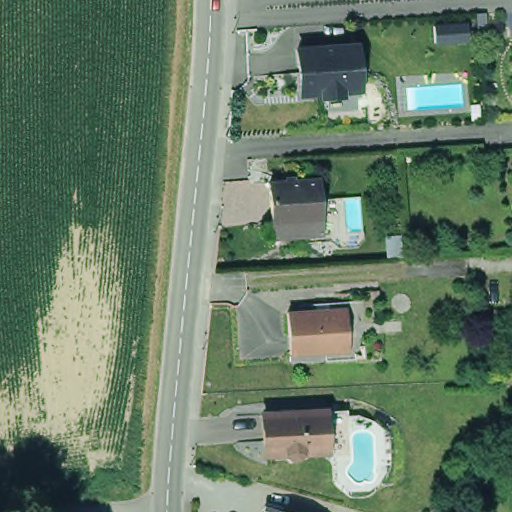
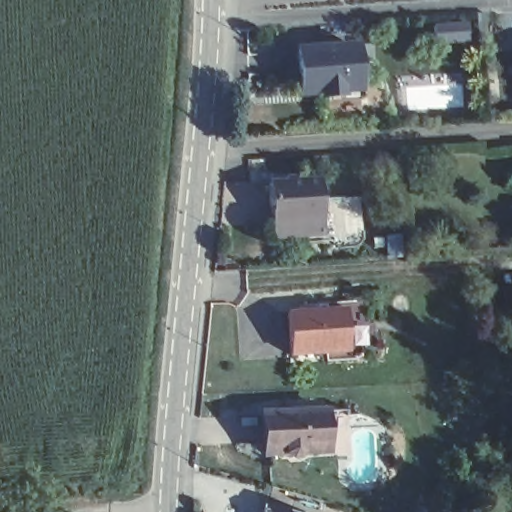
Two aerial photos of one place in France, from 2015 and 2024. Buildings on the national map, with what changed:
unchanged [(301,84),(298,46),(354,41),(355,44),(360,49),(360,58),(356,64),(357,79),(357,87),(342,88),(343,92),(342,92),(323,94),(322,89),(318,90),(302,91),(301,84)]
unchanged [(267,179),(315,175),(317,213),(318,230),(270,234),(269,215),(267,179)]
unchanged [(365,305),(370,359),(334,361),(331,353),(297,355),(295,313),(335,312),(334,306),(365,305)]
unchanged [(263,433),(262,405),(322,402),(342,401),(344,441),(324,442),(298,444),(293,449),(286,449),(281,444),(264,445),(263,433)]
unchanged [(279,512),(264,512),(265,508),(279,512)]

